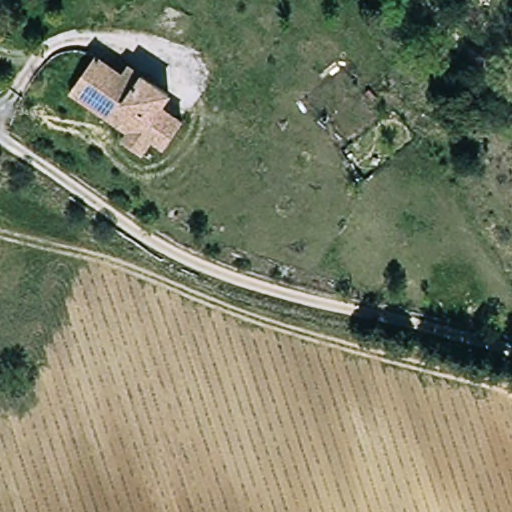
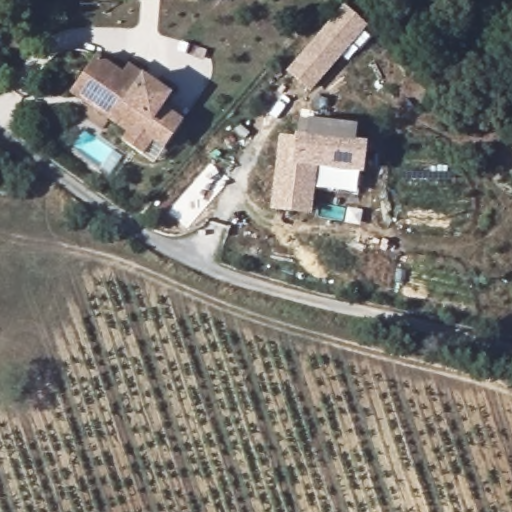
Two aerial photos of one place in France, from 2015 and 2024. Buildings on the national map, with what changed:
new [(177,0),(196,0),(196,1),(177,0)]
new [(309,92),(285,71),(342,5),(366,25),(309,92)]
unchanged [(66,90),(93,55),(103,62),(83,90),(116,114),(110,122),(66,90)]
unchanged [(83,90),(103,62),(122,76),(128,67),(142,78),(168,97),(160,110),(181,125),(162,151),(153,145),(143,160),(120,143),(126,135),(110,122),(116,114),(83,90)]
new [(273,190),(279,135),(295,137),(298,120),(356,126),(355,141),(366,142),(362,172),(316,167),(313,194),(273,190)]

